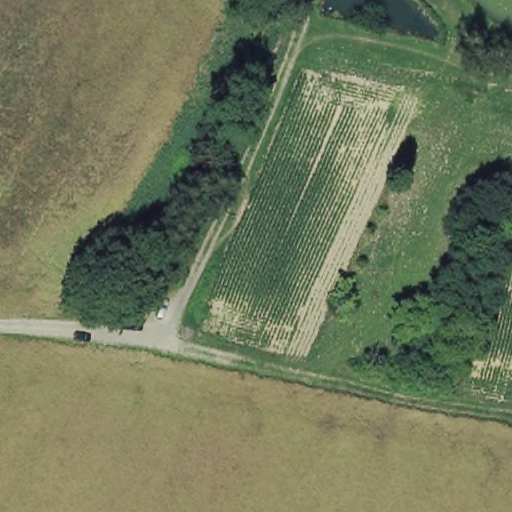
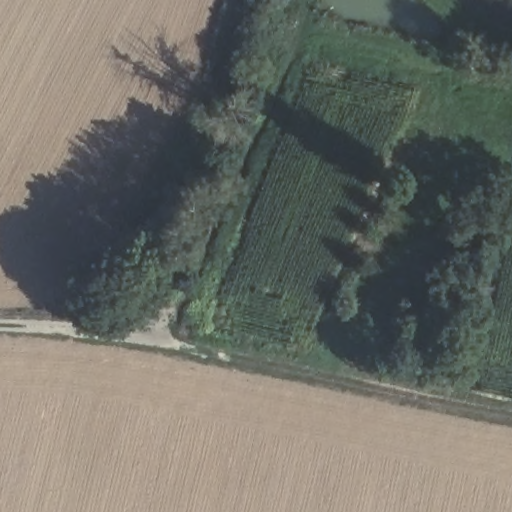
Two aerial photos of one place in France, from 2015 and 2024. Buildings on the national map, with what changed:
unchanged [(95,315),(100,294),(116,297),(133,302),(140,303),(136,323),(123,320),(105,316),(95,315)]

